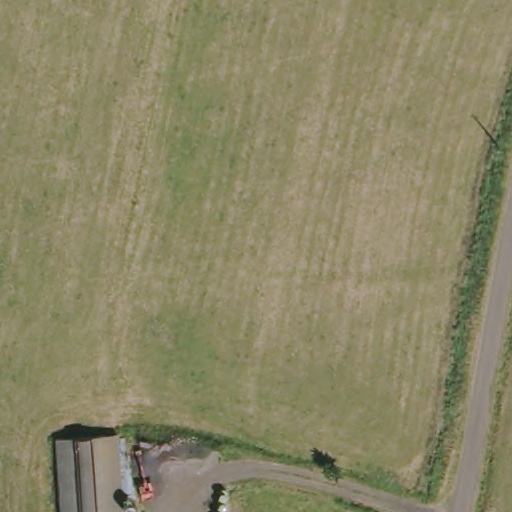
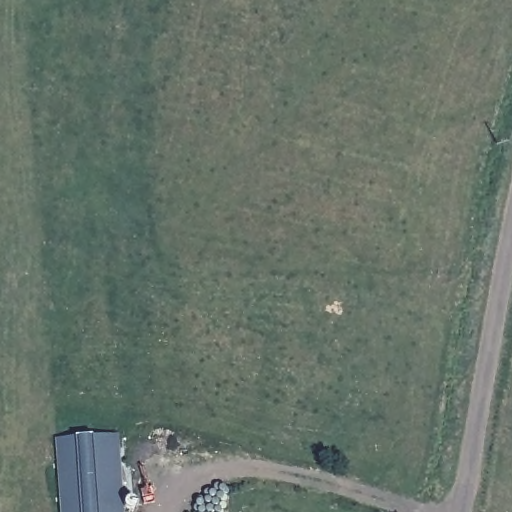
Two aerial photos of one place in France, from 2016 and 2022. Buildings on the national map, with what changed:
unchanged [(70,512),(68,444),(98,442),(126,441),(126,450),(128,512),(70,512)]

